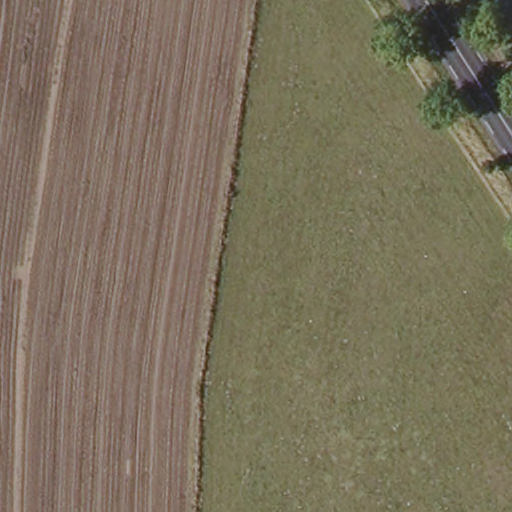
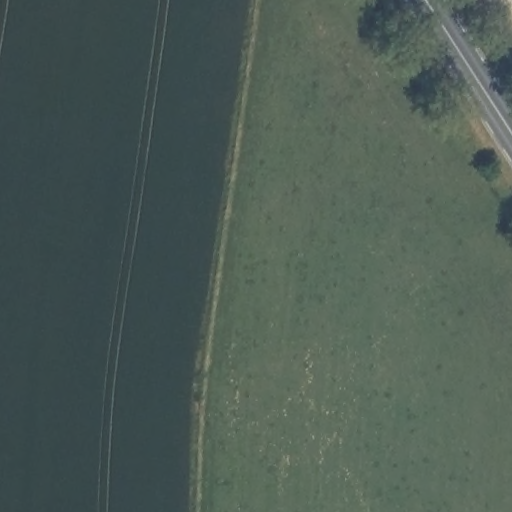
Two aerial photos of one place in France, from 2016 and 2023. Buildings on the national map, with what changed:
[]

